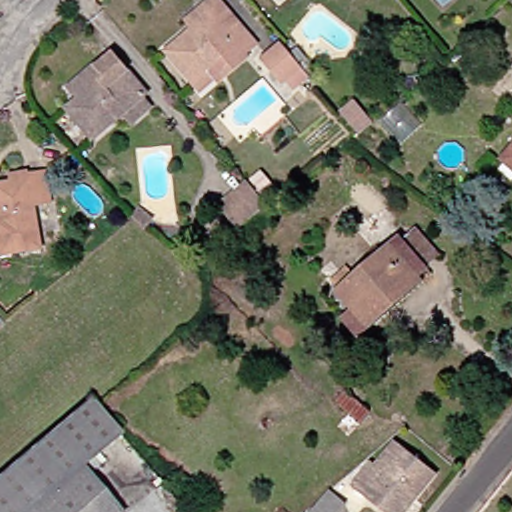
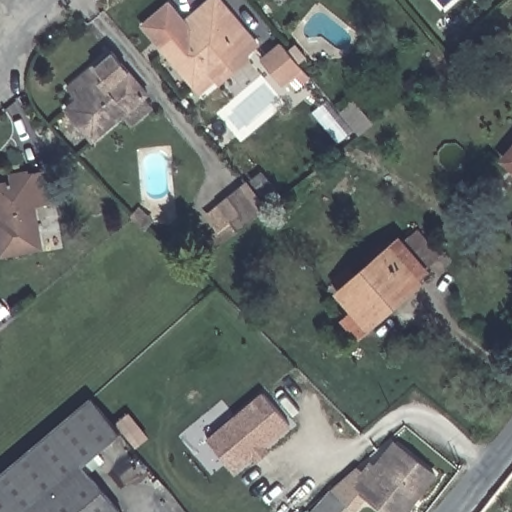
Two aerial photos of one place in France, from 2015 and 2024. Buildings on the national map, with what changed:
unchanged [(211,81),(208,78),(190,93),(155,52),(182,29),(176,22),(193,7),(202,0),(209,0),(235,31),(247,45),(235,55),(238,58),(211,81)]
unchanged [(300,72),(283,86),(275,76),(272,78),(253,55),(272,39),(289,59),(291,62),(292,63),(300,72)]
unchanged [(83,141),(56,109),(67,100),(58,89),(101,51),(138,94),(133,99),(141,108),(123,123),(115,114),(83,141)]
unchanged [(353,102),(372,124),(359,135),(341,113),(353,102)]
unchanged [(495,155),(512,134),(512,169),(495,155)]
unchanged [(24,205),(32,249),(0,254),(0,182),(2,182),(1,175),(17,172),(18,175),(35,172),(41,202),(24,205)]
unchanged [(215,224),(227,214),(216,201),(243,179),(262,202),(235,224),(223,234),(215,224)]
unchanged [(145,230),(132,218),(139,209),(152,221),(145,230)]
unchanged [(333,297),(324,286),(339,273),(348,284),(363,271),(356,263),(368,253),(375,261),(392,247),(405,236),(428,263),(416,274),(408,280),(411,283),(359,328),(348,338),(337,326),(349,316),(333,297)]
new [(236,472),(207,440),(262,392),(292,425),(267,446),(271,451),(256,462),(253,459),(236,472)]
unchanged [(72,467),(111,512),(0,512),(0,465),(80,398),(110,435),(72,467)]
unchanged [(378,512),(344,486),(361,465),(365,468),(385,443),(391,448),(425,475),(395,512),(378,512)]
unchanged [(346,505),(340,512),(313,512),(330,492),(346,505)]

